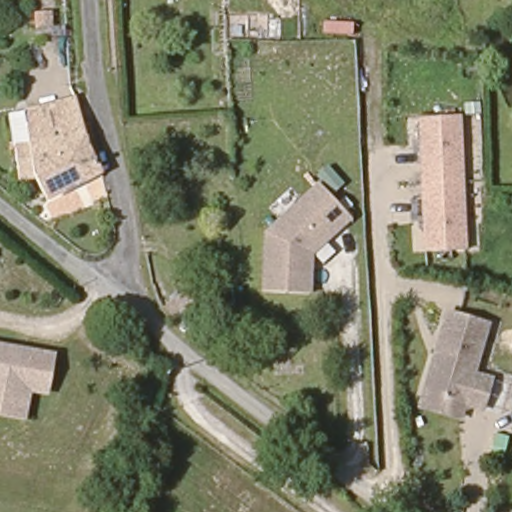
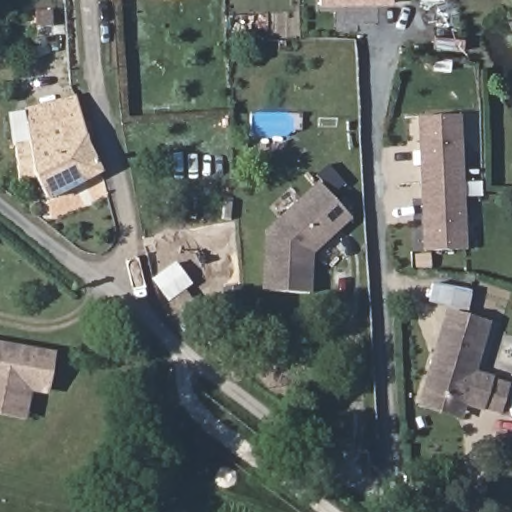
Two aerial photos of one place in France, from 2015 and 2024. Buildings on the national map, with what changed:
new [(392,5),(320,6),(320,0),(392,0),(392,5)]
unchanged [(48,201),(35,178),(20,181),(6,119),(74,101),(87,145),(101,174),(48,201)]
unchanged [(466,247),(422,251),(415,117),(458,116),(466,247)]
unchanged [(333,228),(325,235),(310,249),(309,289),(262,287),(265,228),(318,180),(349,214),(333,228)]
unchanged [(225,318),(223,288),(238,287),(240,317),(225,318)]
unchanged [(185,328),(175,314),(197,298),(212,318),(190,334),(185,328)]
unchanged [(418,399),(423,384),(448,306),(487,319),(472,368),(490,374),(480,402),(462,397),(458,412),(418,399)]
unchanged [(0,342),(17,345),(26,347),(50,352),(43,386),(25,383),(21,400),(19,412),(0,409),(0,342)]
unchanged [(451,438),(425,432),(431,408),(458,414),(451,438)]

